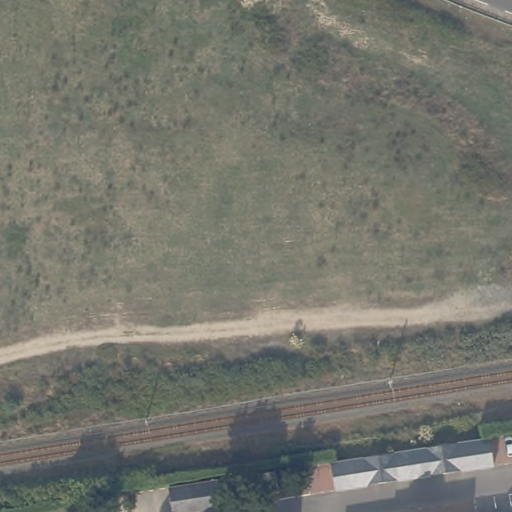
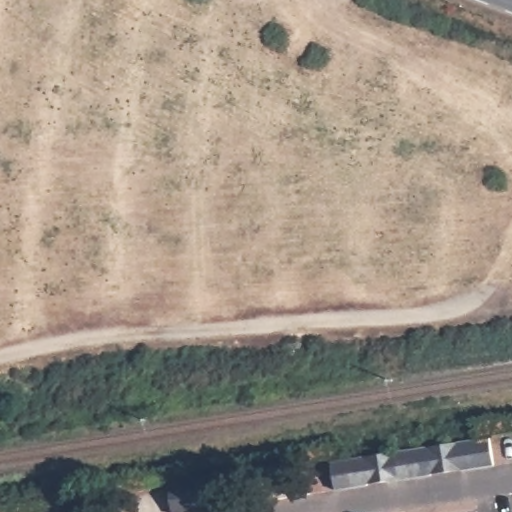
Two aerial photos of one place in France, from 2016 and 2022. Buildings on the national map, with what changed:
unchanged [(490,470),(393,485),(393,483),(365,487),(365,490),(333,495),(328,467),(486,440),(490,470)]
unchanged [(171,512),(168,488),(219,482),(222,512),(171,512)]

